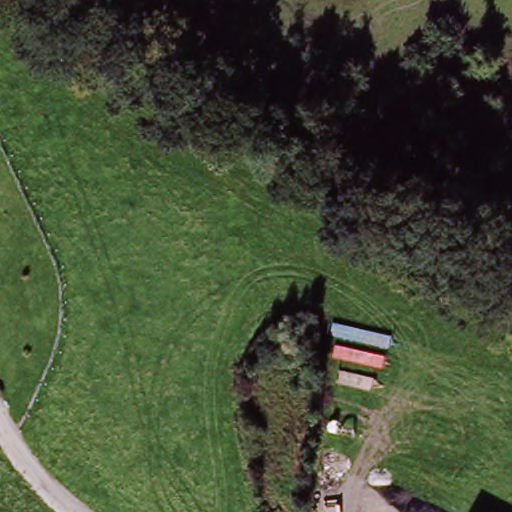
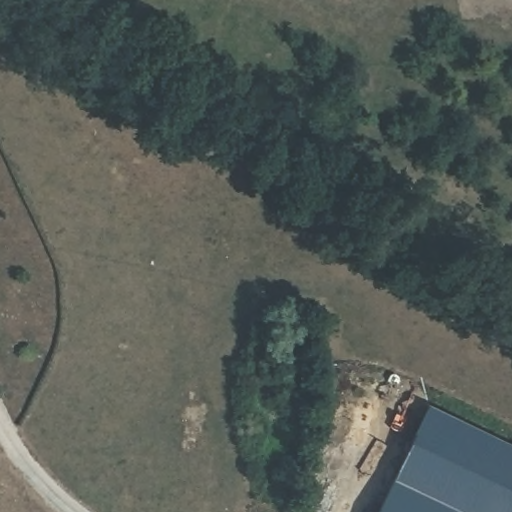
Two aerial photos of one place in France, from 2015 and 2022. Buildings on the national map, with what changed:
new [(478,512),(378,512),(427,411),(507,452),(478,512)]
unchanged [(507,452),(512,455),(512,512),(478,512),(507,452)]

